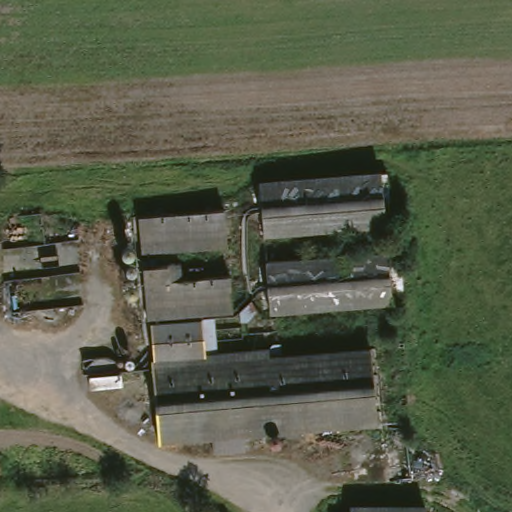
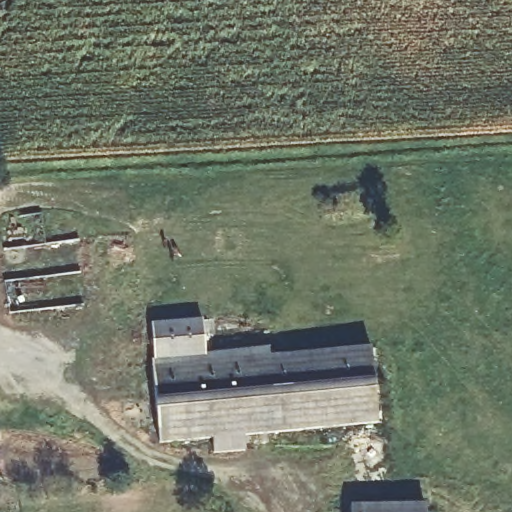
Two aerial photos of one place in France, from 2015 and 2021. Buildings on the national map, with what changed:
demolished [(378,175),(381,227),(261,237),(257,185),(378,175)]
demolished [(224,216),(226,251),(138,255),(136,223),(224,216)]
demolished [(383,254),(388,304),(268,314),(264,264),(383,254)]
demolished [(229,278),(231,318),(143,323),(140,284),(156,283),(229,278)]
unchanged [(212,359),(267,354),(266,349),(279,349),(280,361),(371,352),(379,428),(241,441),(243,454),(214,457),(213,443),(157,448),(146,332),(208,327),(212,359)]

